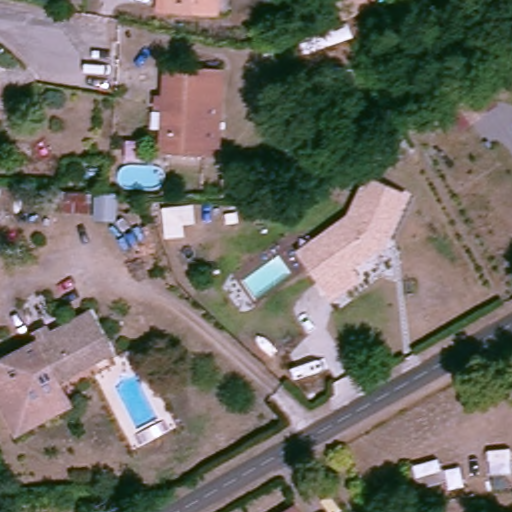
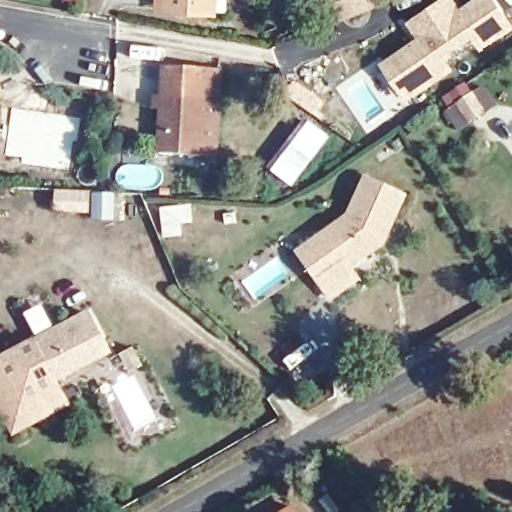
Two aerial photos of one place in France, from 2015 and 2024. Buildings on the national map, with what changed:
unchanged [(166,0),(217,0),(216,12),(166,9),(166,0)]
unchanged [(329,0),(365,0),(342,21),(329,0)]
new [(405,22),(436,0),(456,0),(461,6),(469,0),(496,0),(512,24),(512,28),(480,51),(475,43),(451,61),(455,67),(403,99),(378,62),(415,37),(405,22)]
unchanged [(226,65),(222,153),(164,150),(168,62),(226,65)]
unchanged [(0,83),(0,79),(1,80),(0,83)]
unchanged [(455,103),(470,94),(481,110),(467,120),(455,103)]
new [(304,122),(328,140),(291,187),(267,169),(304,122)]
unchanged [(318,230),(343,212),(361,175),(398,192),(382,230),(377,241),(343,265),(352,276),(326,295),(304,263),(293,248),(318,230)]
unchanged [(250,182),(249,198),(221,197),(222,181),(250,182)]
unchanged [(109,221),(97,221),(98,195),(110,196),(109,221)]
unchanged [(89,198),(87,212),(59,210),(60,196),(89,198)]
unchanged [(89,310),(109,347),(56,375),(59,382),(25,400),(2,355),(89,310)]
unchanged [(59,382),(65,393),(19,417),(0,380),(0,356),(2,355),(25,400),(59,382)]
unchanged [(293,498),(302,512),(270,512),(293,498)]

